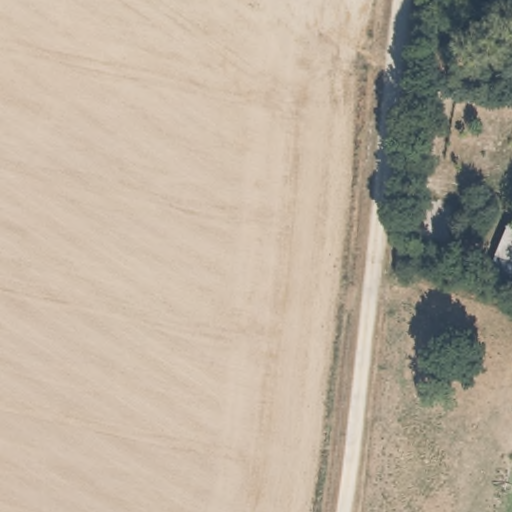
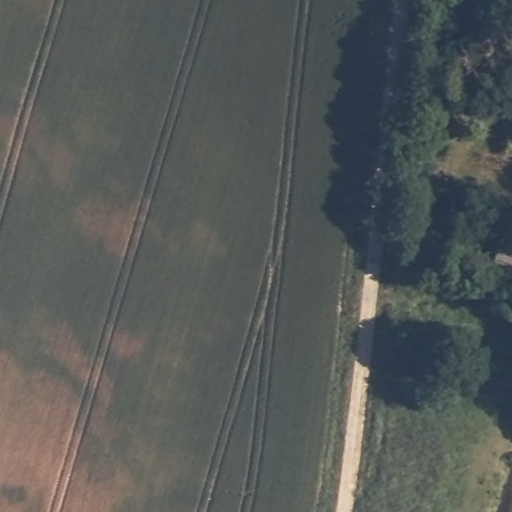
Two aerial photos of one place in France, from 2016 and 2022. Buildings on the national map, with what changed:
unchanged [(502,251),(509,223),(512,224),(512,253),(502,251)]

